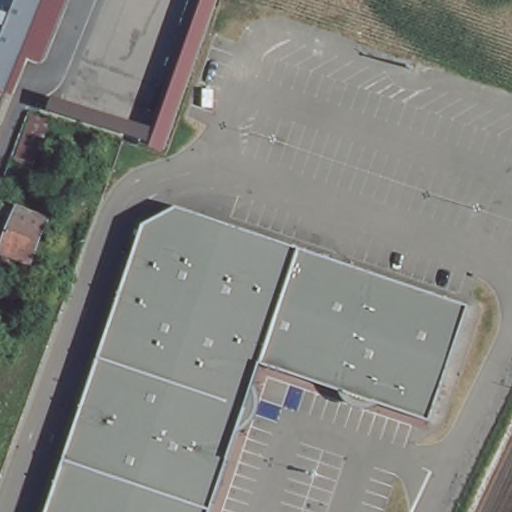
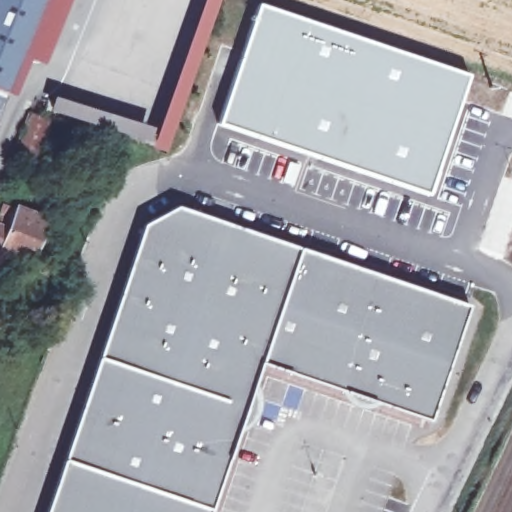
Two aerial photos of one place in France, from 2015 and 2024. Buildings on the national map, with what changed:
unchanged [(23,55),(0,112),(0,0),(66,0),(41,61),(23,55)]
new [(202,0),(219,0),(216,11),(176,117),(165,152),(151,147),(157,127),(202,0)]
new [(256,1),(470,73),(446,150),(430,197),(305,155),(216,123),(256,1)]
new [(53,95),(157,127),(151,147),(49,112),(53,95)]
unchanged [(0,251),(0,225),(1,226),(11,201),(42,212),(31,239),(23,260),(0,251)]
unchanged [(430,416),(260,362),(210,512),(42,512),(142,222),(176,202),(470,302),(430,416)]

